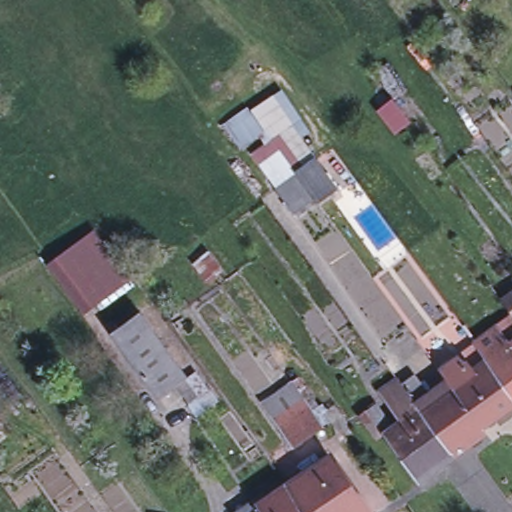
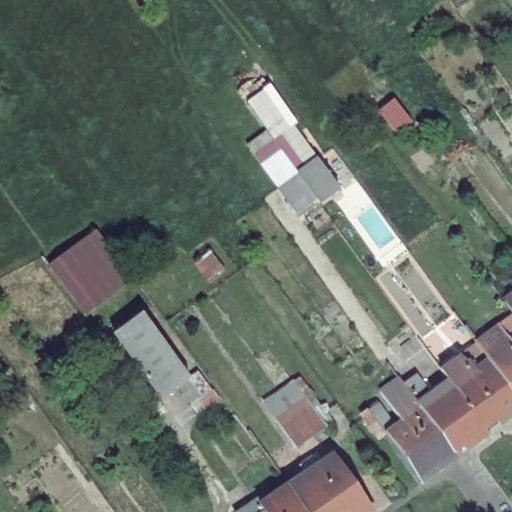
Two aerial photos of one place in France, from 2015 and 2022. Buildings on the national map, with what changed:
unchanged [(248,108),(253,113),(283,92),(312,136),(303,142),(315,160),(338,192),(318,207),(313,199),(294,214),(252,154),(265,146),(259,136),(238,149),(223,127),(248,108)]
unchanged [(459,132),(470,146),(452,160),(441,146),(459,132)]
unchanged [(89,236),(145,312),(136,318),(108,339),(98,326),(88,333),(75,314),(73,316),(42,270),(89,236)]
unchanged [(512,301),(512,310),(508,304),(512,301)]
unchanged [(136,318),(184,383),(155,403),(108,339),(136,318)]
unchanged [(489,433),(492,438),(460,462),(422,410),(453,387),(445,376),(462,364),(481,350),(479,347),(503,331),(512,344),(512,420),(511,417),(489,433)]
unchanged [(384,397),(402,384),(422,410),(460,462),(424,488),(387,441),(382,445),(367,425),(376,417),(373,412),(379,407),(383,412),(400,433),(407,428),(384,397)]
unchanged [(300,386),(318,411),(289,431),(272,406),(300,386)]
unchanged [(218,400),(197,416),(189,406),(210,390),(218,400)]
unchanged [(308,475),(302,466),(315,457),(322,466),(335,456),(373,512),(308,512),(290,487),(308,475)]
unchanged [(261,501),(264,506),(290,487),(308,512),(245,512),(261,501)]

